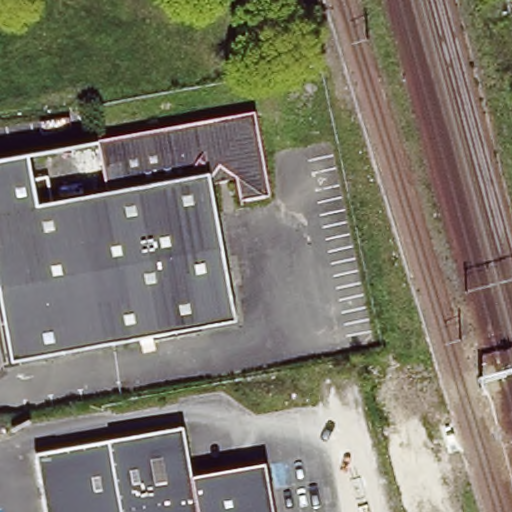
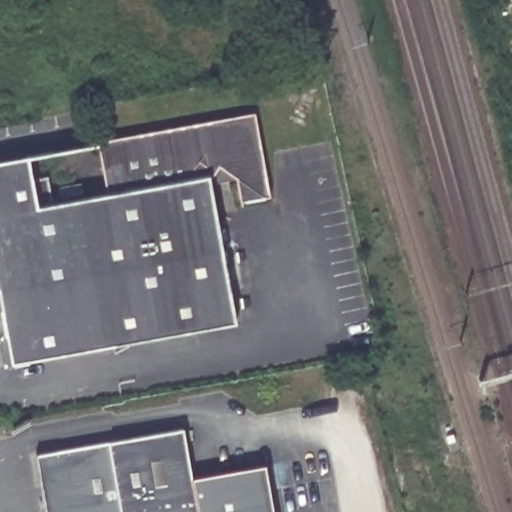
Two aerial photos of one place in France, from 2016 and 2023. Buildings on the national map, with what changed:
unchanged [(100,135),(254,106),(258,129),(104,159),(100,135)]
unchanged [(13,359),(0,287),(0,180),(35,173),(52,170),(58,196),(108,186),(104,159),(258,129),(270,188),(241,194),(237,169),(220,157),(210,168),(239,317),(13,359)]
unchanged [(0,180),(0,156),(31,149),(35,173),(0,180)]
unchanged [(0,433),(0,420),(4,419),(6,431),(0,433)]
unchanged [(180,432),(190,480),(267,466),(276,512),(43,512),(33,458),(180,432)]

